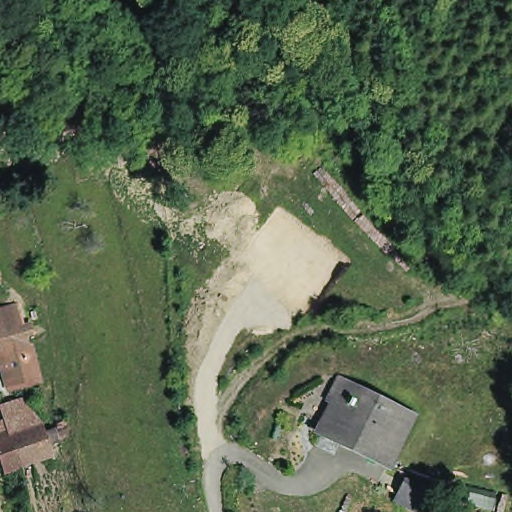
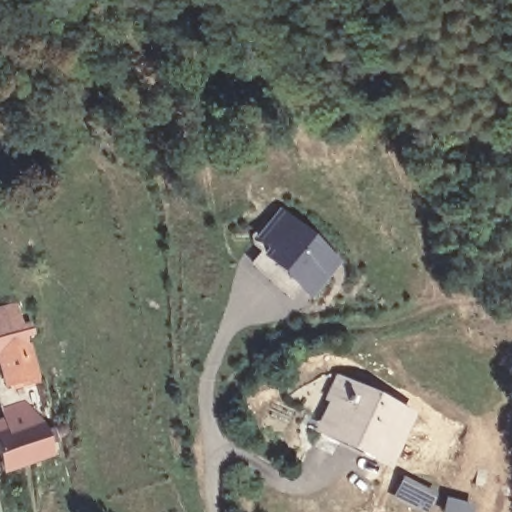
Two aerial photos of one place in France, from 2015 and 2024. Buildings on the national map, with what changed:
new [(280,209),(341,263),(308,300),(260,258),(265,251),(252,239),(280,209)]
unchanged [(12,334),(19,360),(0,365),(0,317),(7,315),(12,334)]
unchanged [(24,339),(20,340),(32,386),(2,394),(0,388),(0,365),(19,360),(12,334),(22,331),(24,339)]
unchanged [(320,436),(324,428),(319,426),(320,423),(325,425),(337,401),(329,397),(330,395),(338,399),(343,388),(335,384),(337,381),(361,394),(340,442),(338,446),(320,436)]
unchanged [(340,442),(361,394),(407,415),(387,461),(390,463),(389,465),(385,463),(340,442)]
unchanged [(55,423),(65,420),(70,436),(60,439),(55,423)]
unchanged [(45,459),(42,460),(6,472),(0,474),(0,440),(35,428),(44,453),(45,459)]
new [(432,512),(405,512),(387,504),(404,477),(440,495),(432,512)]

